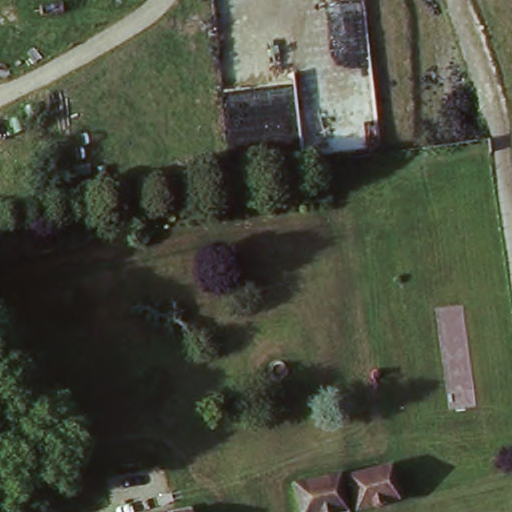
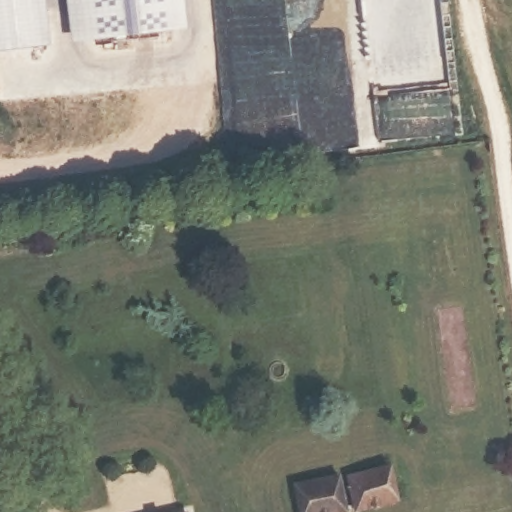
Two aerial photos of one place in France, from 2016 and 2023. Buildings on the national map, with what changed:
new [(0,61),(0,0),(52,0),(56,54),(0,61)]
new [(66,54),(61,0),(186,0),(190,38),(66,54)]
unchanged [(387,468),(392,500),(352,507),(347,475),(387,468)]
unchanged [(339,478),(343,510),(332,512),(297,512),(292,486),(339,478)]

